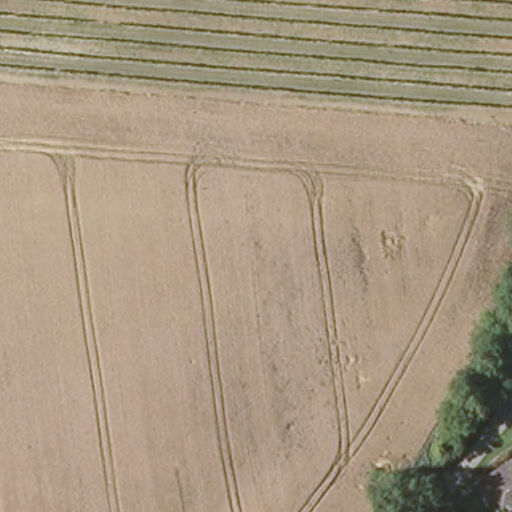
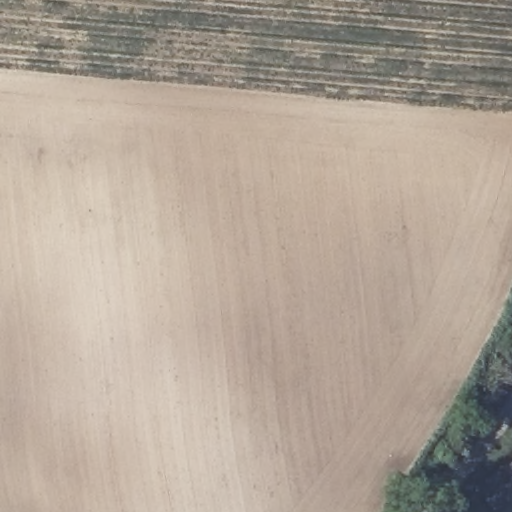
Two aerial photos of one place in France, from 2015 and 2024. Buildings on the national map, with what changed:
unchanged [(512,464),(512,512),(488,512),(474,490),(477,486),(512,464)]

